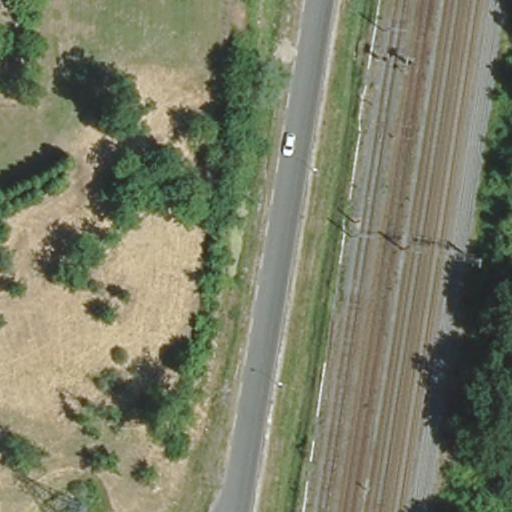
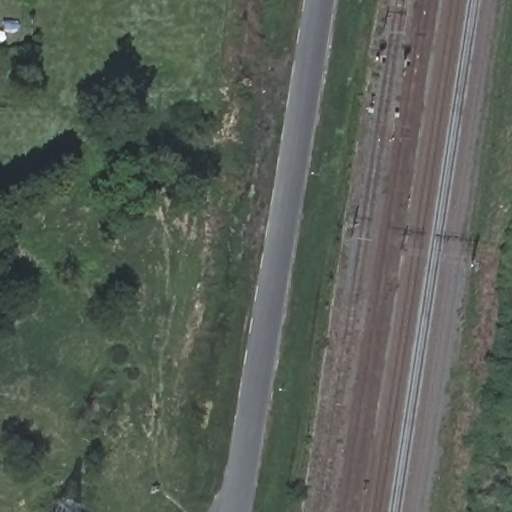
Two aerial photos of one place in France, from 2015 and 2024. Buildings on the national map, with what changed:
[]

